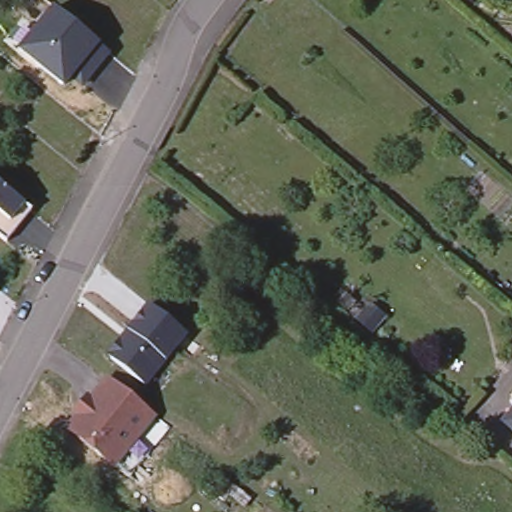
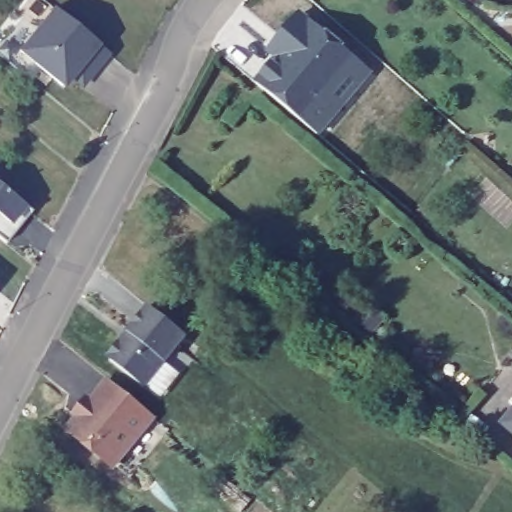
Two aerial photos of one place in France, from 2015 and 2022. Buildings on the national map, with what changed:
unchanged [(69,74),(61,84),(18,48),(52,6),(106,50),(85,76),(80,82),(69,74)]
new [(288,41),(279,35),(298,14),(367,71),(315,134),(254,82),(288,41)]
unchanged [(25,204),(0,234),(0,184),(25,204)]
unchanged [(185,333),(159,365),(142,387),(110,359),(110,352),(119,340),(123,336),(127,330),(148,304),(166,318),(185,333)]
unchanged [(512,348),(512,363),(505,356),(512,348)]
unchanged [(143,406),(152,414),(111,465),(65,428),(82,407),(84,410),(90,402),(87,400),(107,377),(143,406)]
unchanged [(512,394),(512,411),(504,403),(512,394)]
unchanged [(512,412),(512,438),(499,427),(512,412)]

